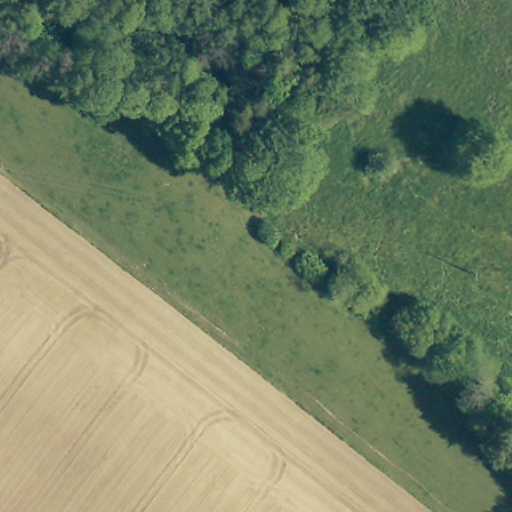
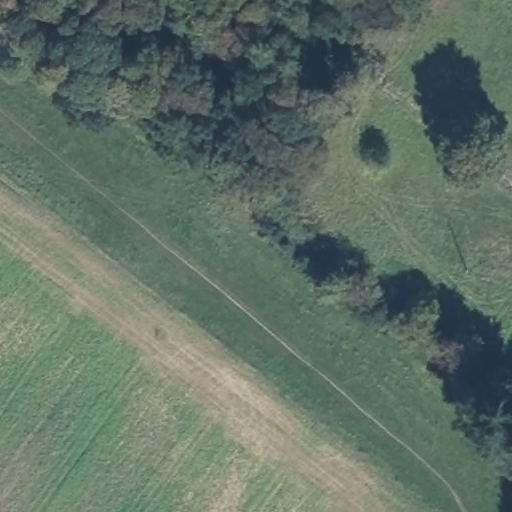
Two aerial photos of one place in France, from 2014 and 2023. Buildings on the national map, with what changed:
[]

